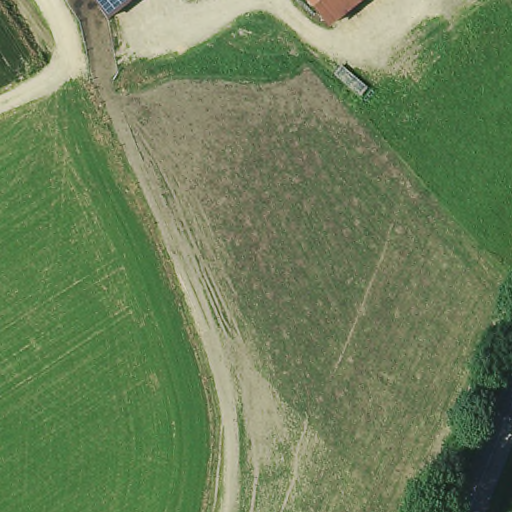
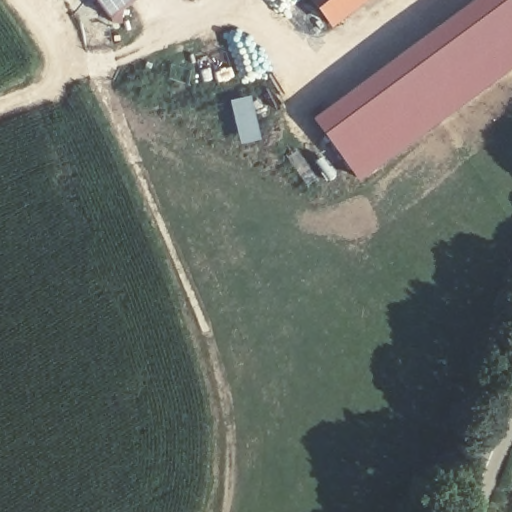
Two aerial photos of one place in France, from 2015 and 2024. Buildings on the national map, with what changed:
unchanged [(93,0),(136,0),(110,21),(93,0)]
new [(466,0),(509,0),(512,3),(512,66),(358,179),(309,116),(440,18),(466,0)]
unchanged [(325,19),(312,0),(352,0),(325,19)]
new [(250,93),(261,138),(239,144),(227,99),(250,93)]

